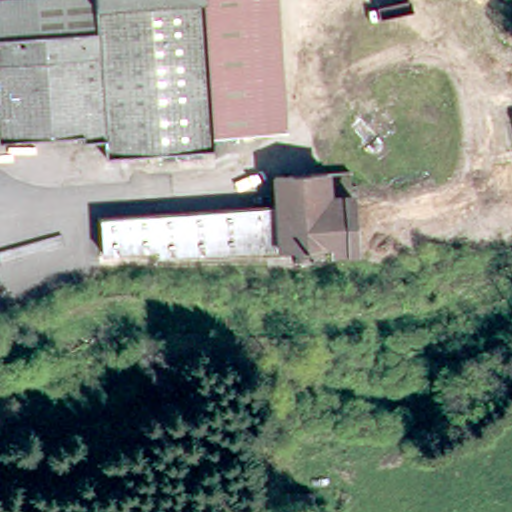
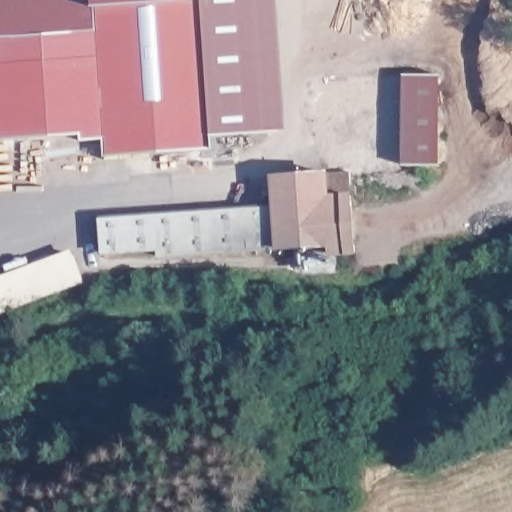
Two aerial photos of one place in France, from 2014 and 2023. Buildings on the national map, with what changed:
unchanged [(207,0),(212,105),(213,134),(214,141),(214,154),(117,159),(116,141),(77,144),(77,137),(70,138),(0,141),(0,47),(38,45),(37,24),(36,1),(65,0),(207,0)]
unchanged [(214,141),(213,134),(212,105),(207,0),(260,0),(267,139),(214,141)]
unchanged [(267,139),(260,0),(280,0),(287,139),(267,139)]
unchanged [(30,1),(36,1),(37,24),(38,45),(0,47),(0,3),(30,1)]
new [(442,75),(441,165),(403,165),(405,76),(442,75)]
unchanged [(359,200),(354,200),(357,256),(332,257),(334,249),(283,251),(283,250),(162,256),(162,249),(105,252),(103,217),(280,208),(279,179),(353,175),(353,190),(358,189),(359,200)]

